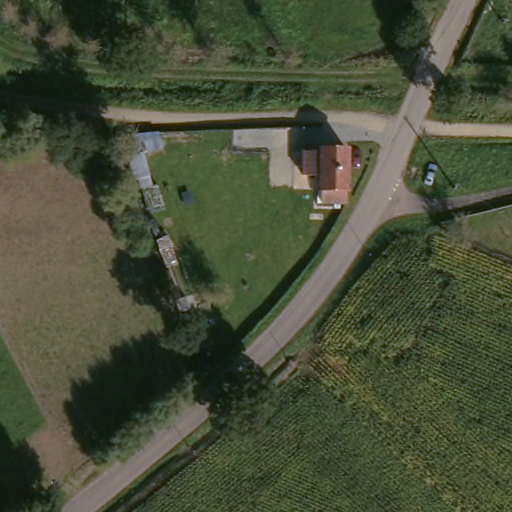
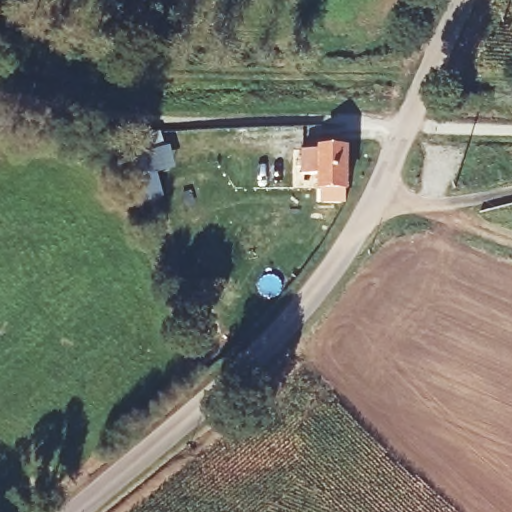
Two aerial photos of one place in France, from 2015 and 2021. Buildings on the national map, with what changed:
unchanged [(322,207),(322,194),(321,194),(321,179),(302,179),(302,156),(321,156),(321,153),(347,153),(347,194),(345,194),(345,207),(322,207)]

